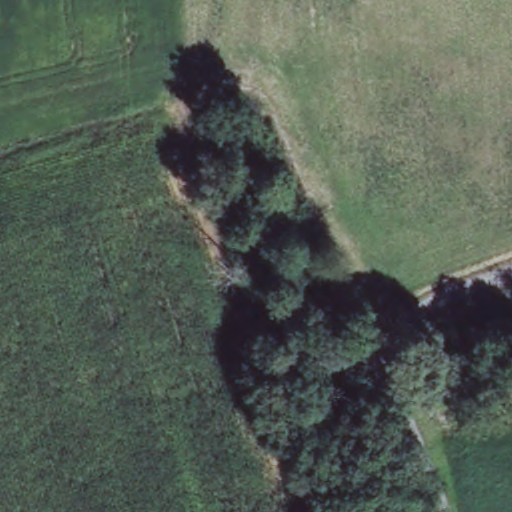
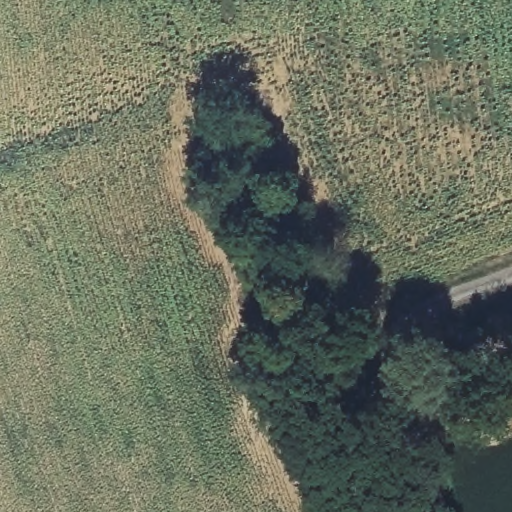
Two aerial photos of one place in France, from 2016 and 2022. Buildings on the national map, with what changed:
[]

